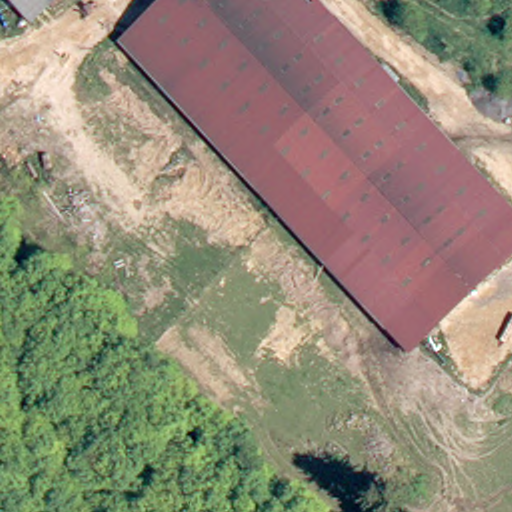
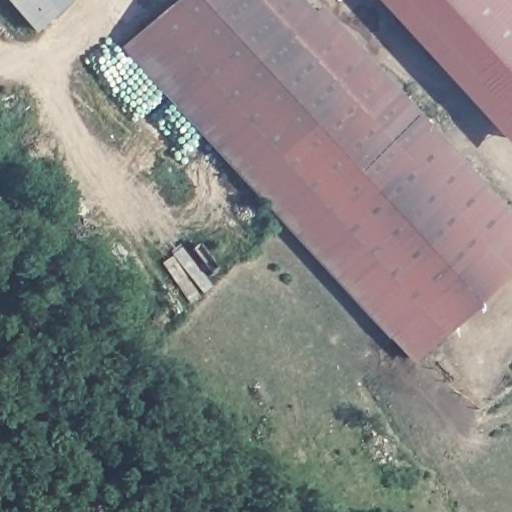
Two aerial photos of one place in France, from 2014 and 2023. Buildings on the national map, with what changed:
unchanged [(38,40),(0,1),(0,0),(80,0),(38,40)]
unchanged [(512,207),(512,259),(421,352),(121,53),(173,0),(293,0),(317,25),(326,17),(512,207)]
new [(373,0),(512,0),(512,151),(373,0)]

